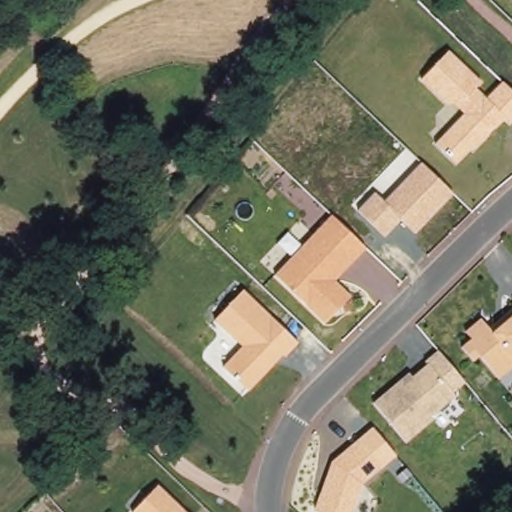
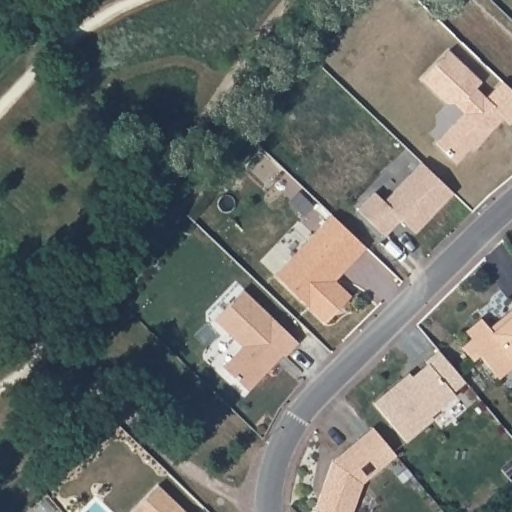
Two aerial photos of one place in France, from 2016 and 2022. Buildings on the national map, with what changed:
unchanged [(480,92),(488,100),(503,84),(512,93),(512,124),(505,130),(498,125),(461,165),(436,144),(465,111),(460,105),(450,112),(416,84),(446,48),(487,85),(480,92)]
unchanged [(456,192),(417,234),(401,221),(389,235),(360,211),(375,193),(384,200),(421,161),(456,192)]
unchanged [(335,281),(351,296),(325,323),(275,275),(331,215),(366,248),(335,281)]
unchanged [(297,342),(285,355),(282,353),(246,391),(222,366),(242,347),(213,319),(243,288),(297,342)]
unchanged [(512,301),(512,303),(511,301),(512,301)]
unchanged [(512,315),(512,373),(500,382),(480,360),(474,363),(460,348),(469,341),(460,332),(479,318),(492,329),(512,315)]
unchanged [(469,385),(405,439),(375,403),(411,373),(416,377),(427,367),(424,363),(438,350),(469,385)]
unchanged [(362,484),(352,512),(327,512),(315,508),(330,461),(357,440),(382,468),(362,484)]
unchanged [(131,512),(159,482),(188,512),(131,512)]

